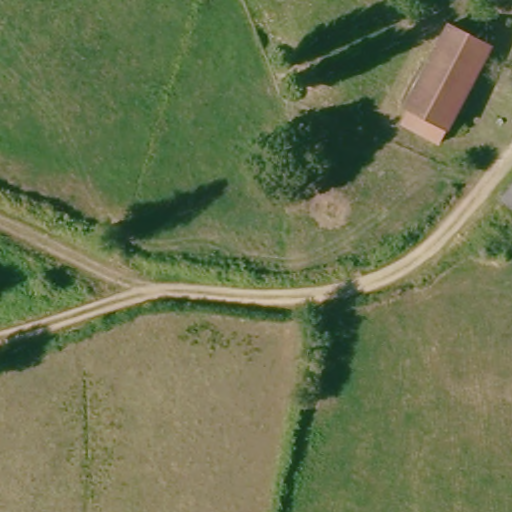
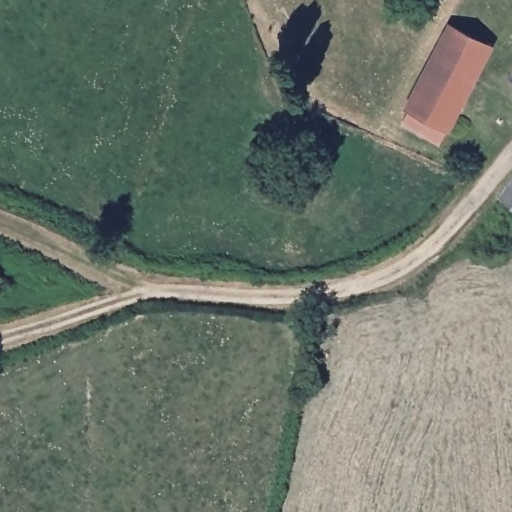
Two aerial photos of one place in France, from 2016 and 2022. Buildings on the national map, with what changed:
unchanged [(414,114),(409,111),(454,28),(496,50),(453,135),(450,134),(444,145),(407,129),(414,114)]
unchanged [(512,190),(512,205),(505,199),(512,190)]

